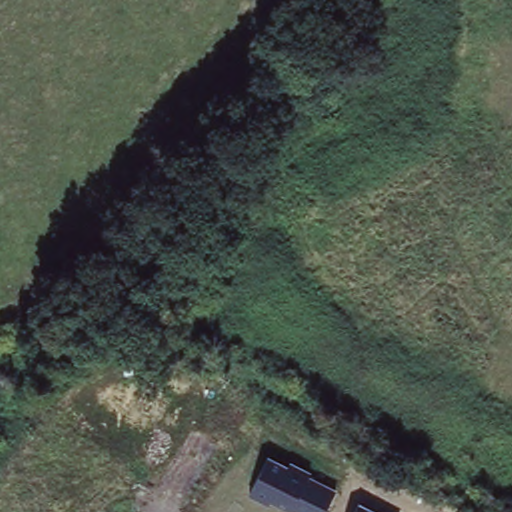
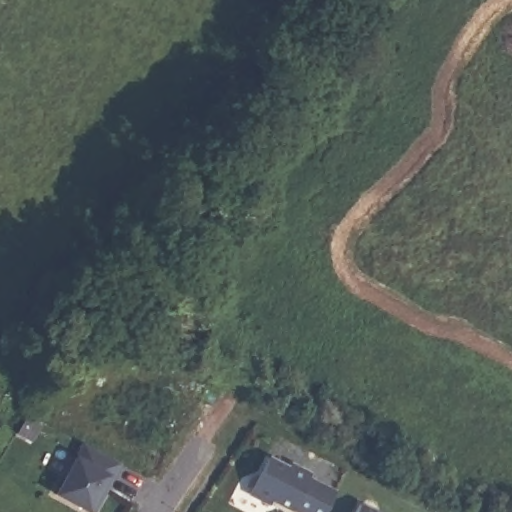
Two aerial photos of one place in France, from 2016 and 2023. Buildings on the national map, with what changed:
new [(113,463),(101,485),(105,487),(92,512),(84,512),(54,496),(81,446),(113,463)]
unchanged [(293,512),(250,492),(267,455),(334,488),(324,512),(293,512)]
unchanged [(380,512),(352,512),(357,500),(380,512)]

